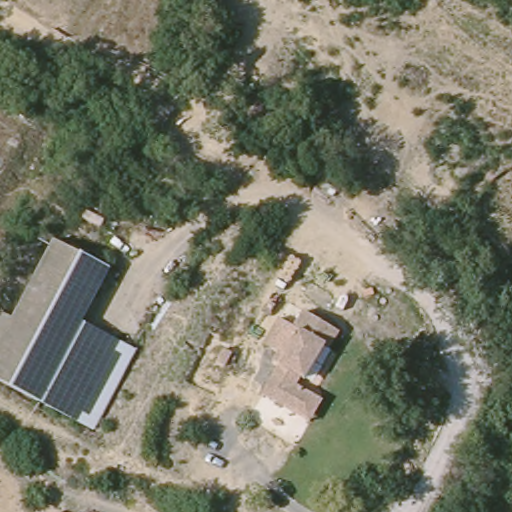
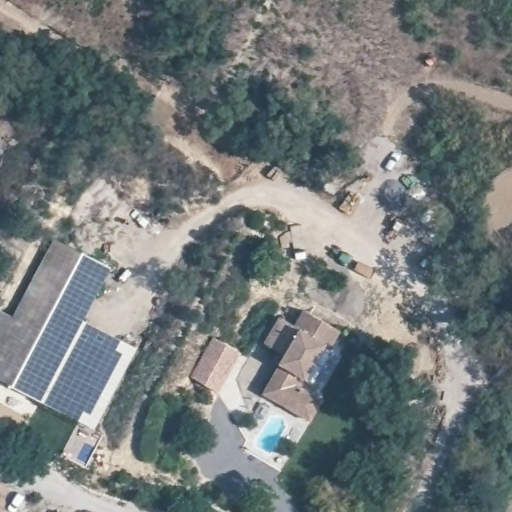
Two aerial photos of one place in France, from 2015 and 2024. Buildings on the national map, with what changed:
unchanged [(1,302),(17,310),(54,233),(114,264),(87,316),(136,342),(93,420),(0,373),(0,304),(1,302)]
unchanged [(327,395),(313,418),(267,392),(290,352),(269,340),(284,313),(300,322),(309,307),(343,327),(335,342),(332,341),(312,377),(305,373),(301,380),(327,395)]
new [(212,337),(242,353),(220,393),(190,377),(212,337)]

